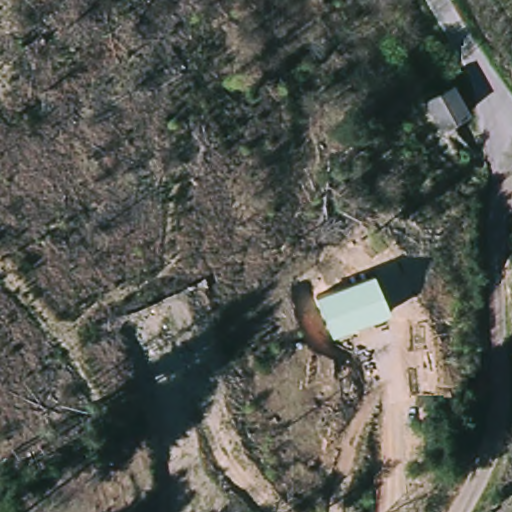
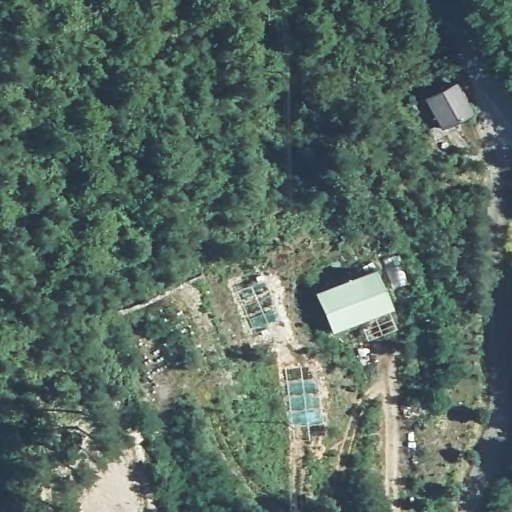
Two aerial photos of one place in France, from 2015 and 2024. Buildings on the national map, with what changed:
unchanged [(425,102),(452,83),(472,112),(445,130),(425,102)]
unchanged [(369,267),(387,308),(329,333),(312,293),(369,267)]

